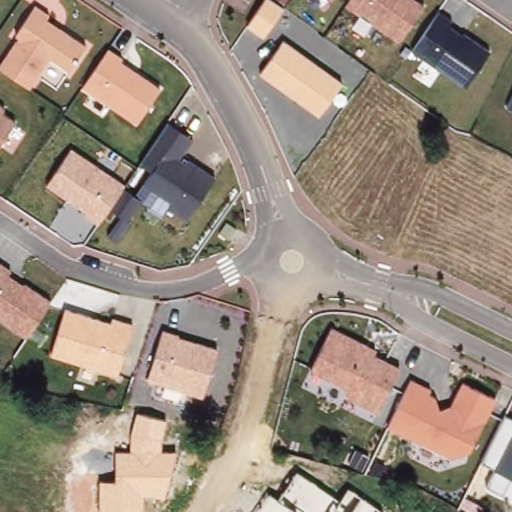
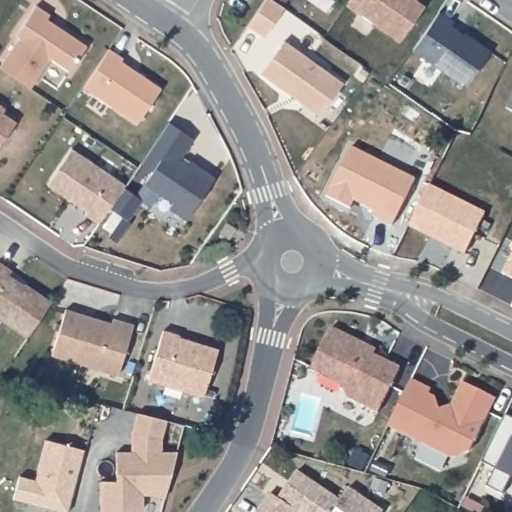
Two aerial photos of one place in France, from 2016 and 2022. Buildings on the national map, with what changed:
unchanged [(246,26),(265,0),(272,0),(284,7),(263,37),(246,26)]
unchanged [(347,4),(349,0),(418,0),(425,5),(400,43),(347,4)]
unchanged [(51,58),(30,88),(1,70),(19,37),(15,35),(33,7),(49,16),(46,20),(86,44),(69,70),(51,58)]
unchanged [(413,51),(440,15),(452,23),(449,27),(487,52),(464,87),(413,51)]
unchanged [(261,75),(284,42),(342,83),(319,117),(261,75)]
unchanged [(82,87),(106,52),(161,89),(138,125),(82,87)]
unchanged [(507,107),(512,98),(512,110),(507,107)]
unchanged [(0,109),(0,103),(3,105),(0,109)]
unchanged [(0,145),(0,113),(16,122),(0,145)]
unchanged [(109,208),(121,187),(134,195),(148,171),(140,165),(166,124),(191,140),(180,159),(187,165),(190,161),(213,177),(184,219),(167,207),(171,202),(159,194),(150,207),(141,203),(131,221),(109,208)]
unchanged [(83,216),(86,211),(45,186),(69,149),(124,185),(121,187),(109,208),(98,225),(83,216)]
new [(414,181),(391,227),(372,219),(375,214),(353,203),(349,211),(325,199),(350,149),(414,181)]
new [(428,187),(484,215),(464,254),(408,226),(428,187)]
new [(512,253),(512,278),(502,273),(512,253)]
unchanged [(0,264),(10,270),(7,275),(24,285),(25,283),(48,300),(26,337),(0,320),(0,264)]
unchanged [(53,356),(66,310),(110,322),(111,317),(133,324),(116,374),(53,356)]
unchanged [(347,399),(342,386),(311,372),(331,327),(376,347),(376,356),(399,367),(378,411),(347,399)]
unchanged [(149,381),(161,332),(218,348),(203,398),(149,381)]
unchanged [(448,457),(387,427),(411,381),(431,390),(429,396),(437,399),(439,408),(451,406),(463,381),(497,397),(470,452),(448,457)]
unchanged [(115,481),(115,452),(131,452),(131,436),(136,414),(167,420),(161,438),(162,452),(177,452),(165,498),(143,496),(144,508),(139,512),(100,512),(100,482),(115,481)]
unchanged [(510,477),(502,494),(487,487),(495,469),(483,462),(507,417),(512,419),(512,478),(510,477)]
new [(19,476),(35,480),(46,440),(84,450),(73,491),(67,512),(64,512),(52,508),(40,506),(30,502),(13,498),(19,476)]
unchanged [(277,498),(297,472),(340,500),(348,488),(382,511),(381,512),(297,512),(296,512),(257,512),(270,493),(277,498)]

